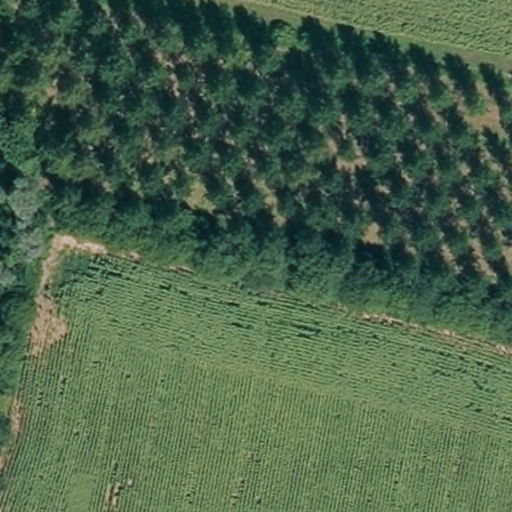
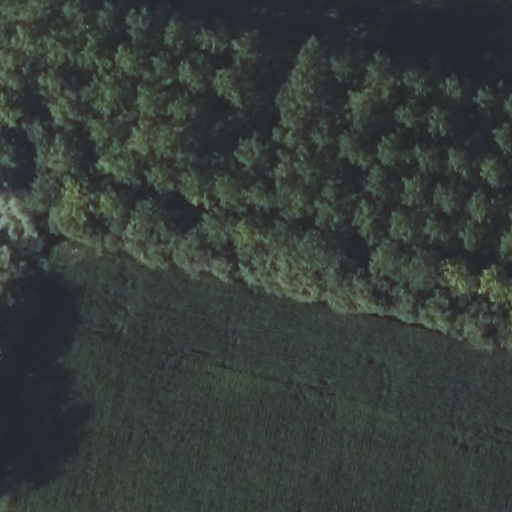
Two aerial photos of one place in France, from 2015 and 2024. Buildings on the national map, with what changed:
[]

